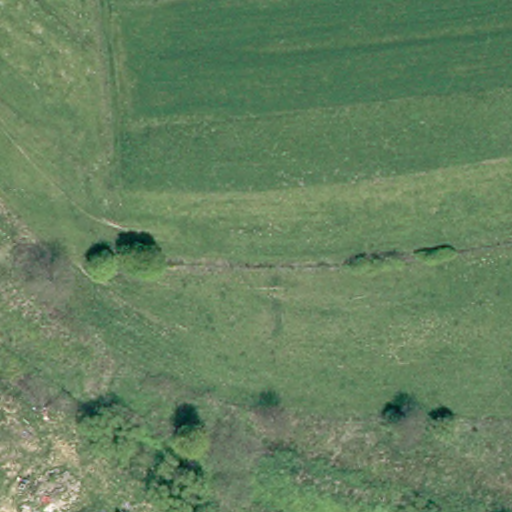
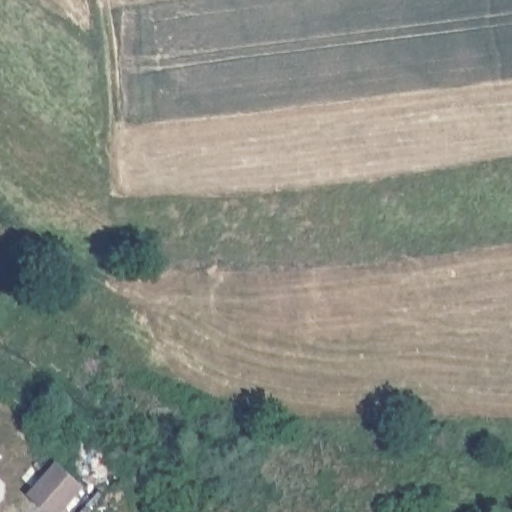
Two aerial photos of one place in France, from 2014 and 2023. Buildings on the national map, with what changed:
new [(86,485),(59,512),(56,512),(30,491),(59,460),(86,485)]

